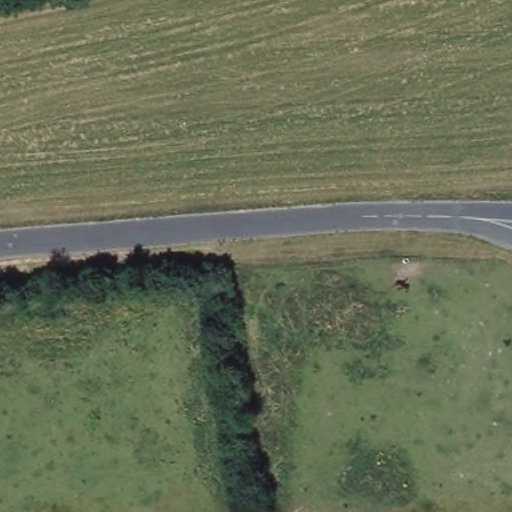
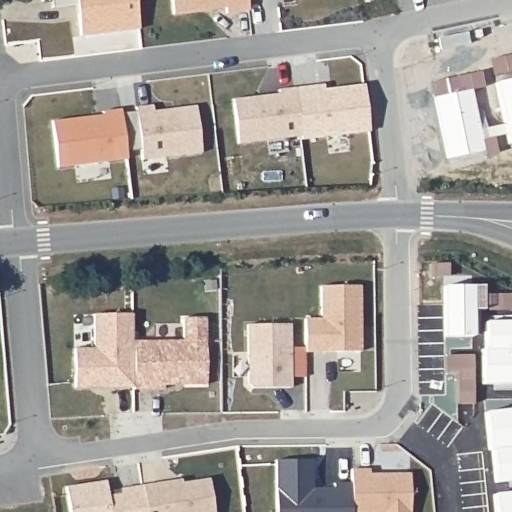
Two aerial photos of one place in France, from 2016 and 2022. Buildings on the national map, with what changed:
new [(84,36),(80,5),(55,8),(54,0),(138,0),(142,30),(84,36)]
new [(175,0),(250,0),(252,11),(230,14),(229,9),(205,11),(177,15),(175,0)]
new [(317,86),(318,91),(367,85),(373,131),(305,140),(304,136),(299,89),(317,86)]
new [(283,95),(282,91),(299,89),(304,136),(242,144),(237,100),(283,95)]
new [(106,112),(124,110),(125,113),(140,111),(139,108),(156,106),(157,112),(200,106),(205,153),(146,160),(145,150),(129,152),(130,159),(61,168),(55,121),(106,116),(106,112)]
new [(324,320),(324,287),(363,287),(364,352),(308,353),(308,320),(324,320)]
new [(97,349),(97,315),(136,314),(137,387),(78,388),(78,349),(97,349)]
new [(293,325),(294,388),(256,389),(251,384),(250,325),(293,325)]
new [(315,460),(315,490),(337,489),(337,484),(355,484),(355,512),(279,512),(279,461),(315,460)]
new [(373,470),(373,475),(413,474),(413,512),(355,512),(355,484),(354,470),(373,470)]
new [(184,480),(185,484),(212,479),(217,512),(149,512),(145,486),(164,483),(184,480)]
new [(110,491),(123,489),(145,486),(149,512),(72,512),(68,488),(108,482),(110,491)]

